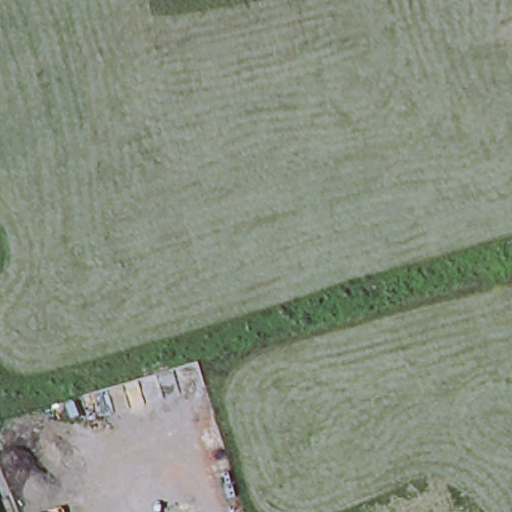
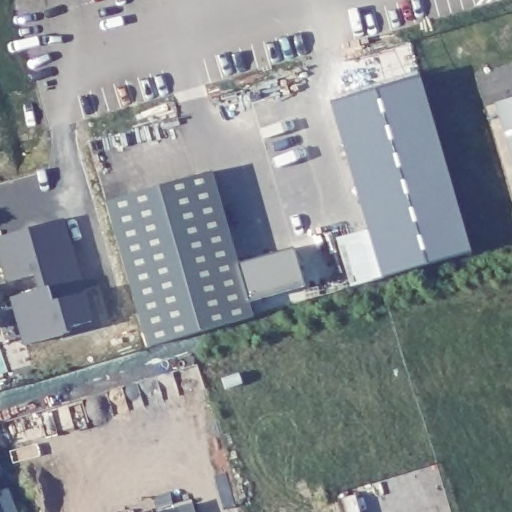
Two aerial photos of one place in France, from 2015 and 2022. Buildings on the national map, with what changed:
new [(417,75),(470,250),(380,276),(332,103),(417,75)]
new [(512,98),(512,160),(495,103),(512,98)]
new [(108,202),(212,172),(240,264),(296,249),(306,285),(251,302),(254,316),(150,346),(108,202)]
new [(0,252),(0,237),(65,219),(77,263),(85,293),(93,320),(70,327),(72,332),(27,346),(14,297),(0,252)]
new [(193,502),(197,512),(161,512),(193,502)]

